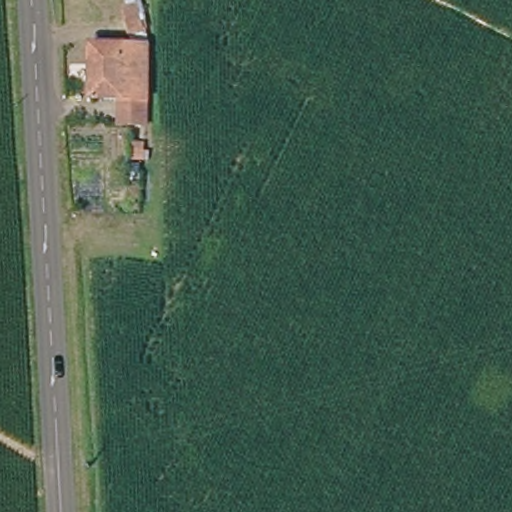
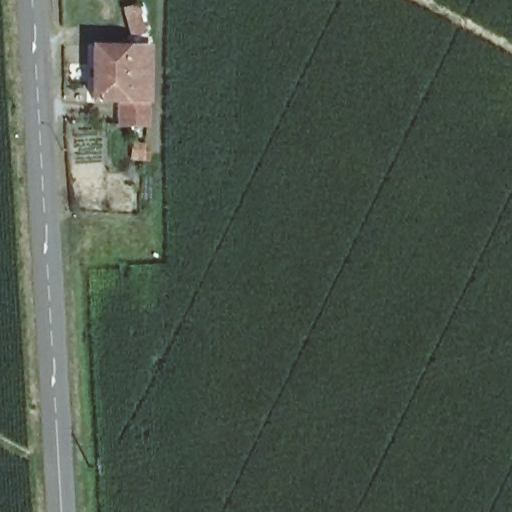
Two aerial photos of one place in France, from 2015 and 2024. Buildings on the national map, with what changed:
unchanged [(122,99),(100,98),(101,51),(135,52),(147,53),(152,53),(152,57),(151,101),(150,125),(121,123),(122,99)]

